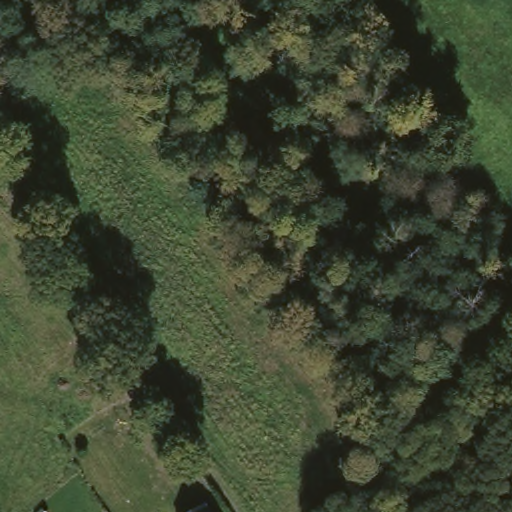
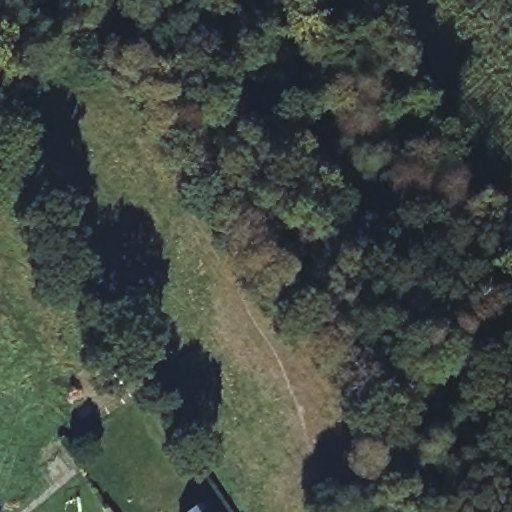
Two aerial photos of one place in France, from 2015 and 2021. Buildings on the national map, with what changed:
unchanged [(211,502),(217,512),(198,512),(211,502)]

